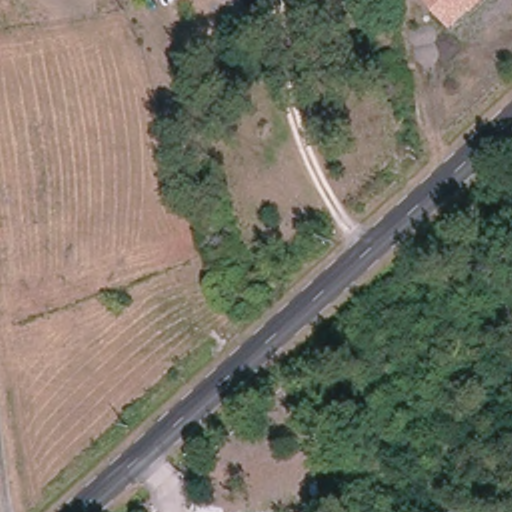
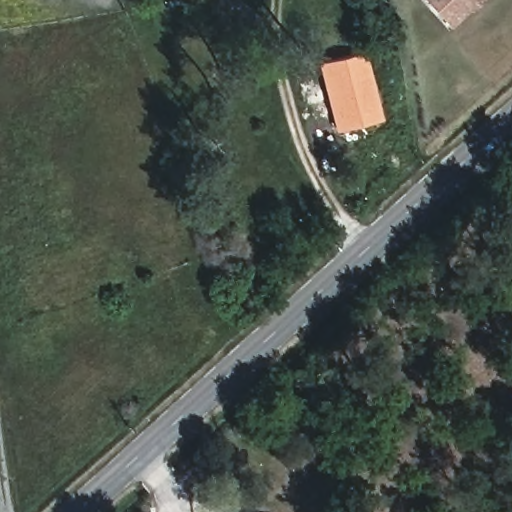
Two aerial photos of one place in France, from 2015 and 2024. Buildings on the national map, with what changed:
unchanged [(450,30),(423,0),(481,0),(450,30)]
new [(319,64),(366,51),(383,118),(339,130),(319,64)]

